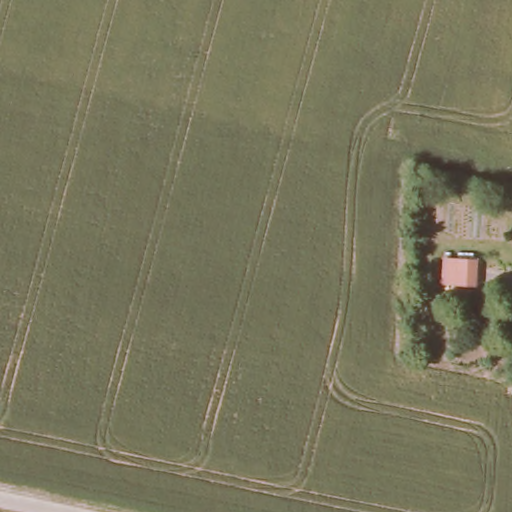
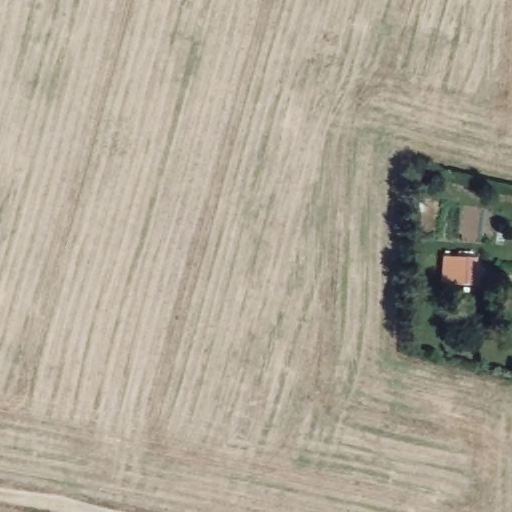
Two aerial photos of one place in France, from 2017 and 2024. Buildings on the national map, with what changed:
unchanged [(446,283),(447,256),(481,257),(477,285),(446,283)]

